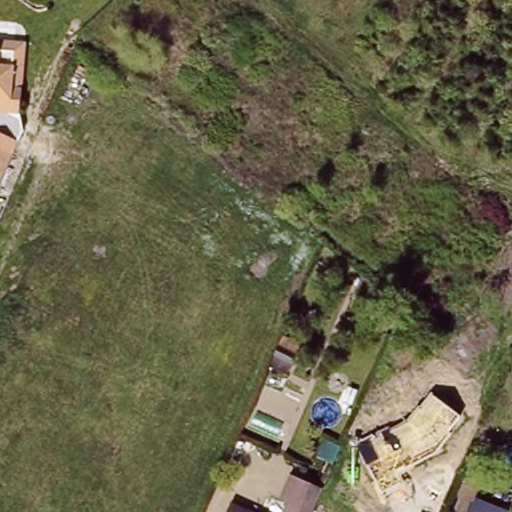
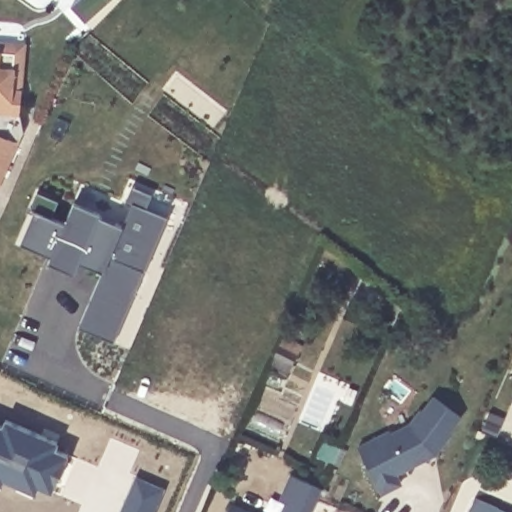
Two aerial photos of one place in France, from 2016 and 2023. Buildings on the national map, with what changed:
unchanged [(28,44),(23,116),(0,115),(0,43),(28,44)]
unchanged [(18,116),(22,128),(0,181),(0,115),(18,116)]
new [(114,341),(79,326),(103,270),(78,259),(73,271),(48,261),(51,254),(21,242),(35,209),(30,206),(38,191),(58,199),(49,215),(65,222),(75,200),(101,211),(99,215),(123,225),(130,204),(126,202),(133,185),(152,194),(147,207),(167,216),(114,341)]
new [(401,483),(383,492),(359,446),(391,430),(392,432),(411,423),(422,409),(424,410),(435,396),(462,416),(450,431),(452,433),(437,453),(407,468),(397,473),(401,483)]
demolished [(512,472),(512,476),(511,475),(512,472)]
unchanged [(283,499),(295,474),(325,487),(319,499),(313,512),(282,512),(287,501),(283,499)]
unchanged [(512,512),(465,512),(473,495),(512,512)]
unchanged [(246,512),(230,512),(232,506),(246,512)]

